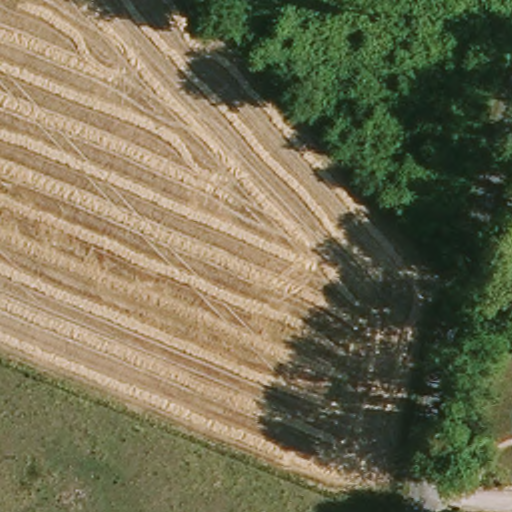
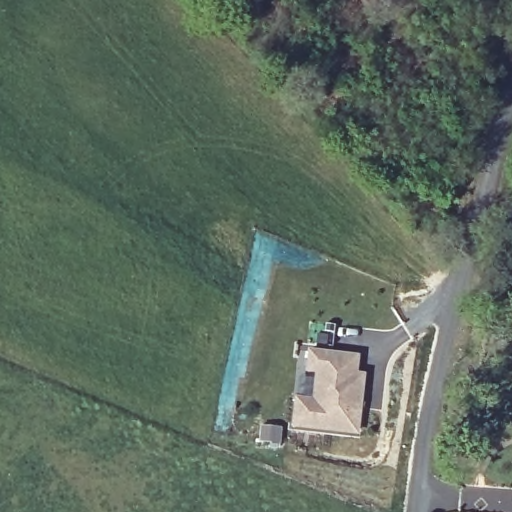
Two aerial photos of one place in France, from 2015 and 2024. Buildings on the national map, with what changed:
new [(296,398),(313,401),(317,371),(306,370),(309,352),(356,357),(355,374),(363,375),(357,432),(293,425),(296,398)]

